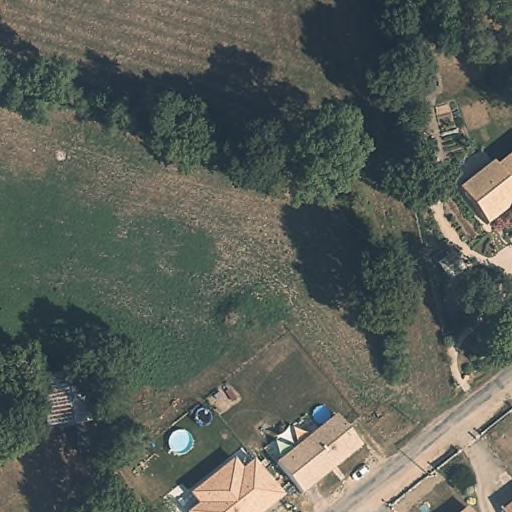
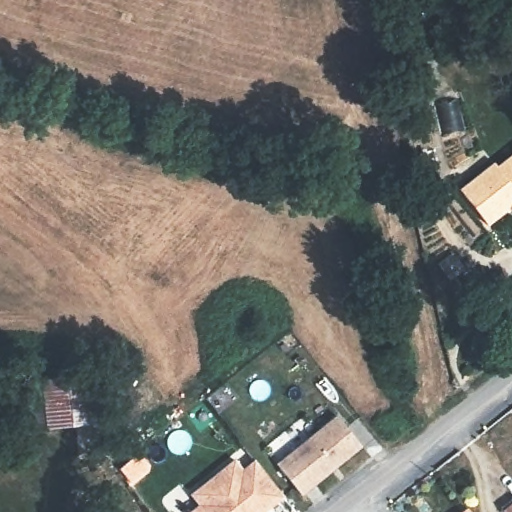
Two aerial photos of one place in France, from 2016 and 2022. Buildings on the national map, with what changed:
unchanged [(497,165),(500,169),(512,160),(512,206),(510,211),(490,226),(463,190),(497,165)]
unchanged [(109,422),(33,431),(26,382),(93,377),(109,422)]
unchanged [(334,414),(360,445),(303,495),(275,465),(334,414)]
unchanged [(233,458),(241,468),(253,457),(283,497),(265,512),(189,512),(196,505),(190,496),(233,458)]
unchanged [(505,512),(501,507),(512,499),(512,512),(505,512)]
unchanged [(458,512),(464,507),(468,512),(458,512)]

